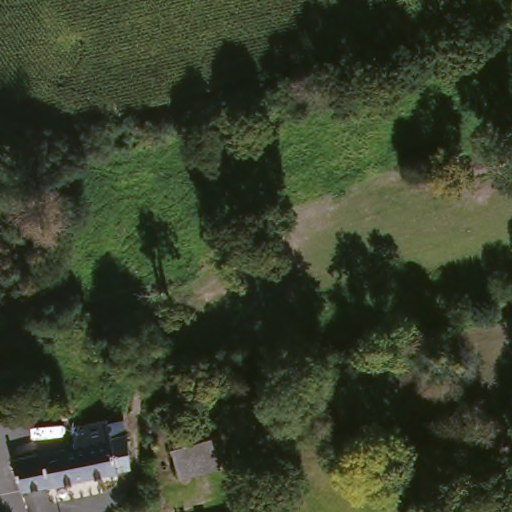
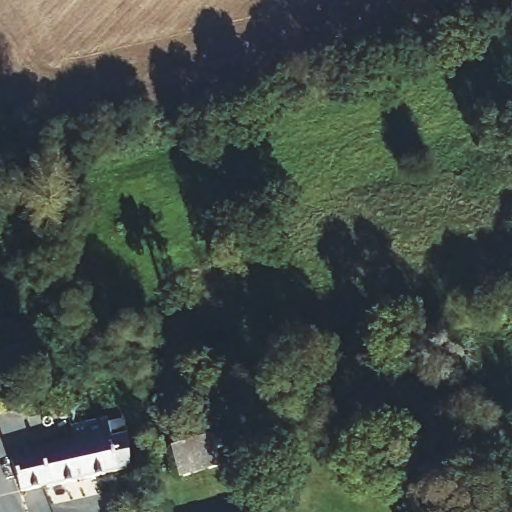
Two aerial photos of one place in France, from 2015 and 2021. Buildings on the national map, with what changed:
unchanged [(5,398),(0,399),(0,372),(2,372),(5,398)]
unchanged [(80,442),(77,424),(102,419),(113,416),(116,433),(131,431),(137,464),(57,483),(26,490),(17,456),(80,442)]
unchanged [(510,436),(507,453),(468,449),(471,432),(510,436)]
unchanged [(204,436),(214,465),(174,478),(165,448),(204,436)]

